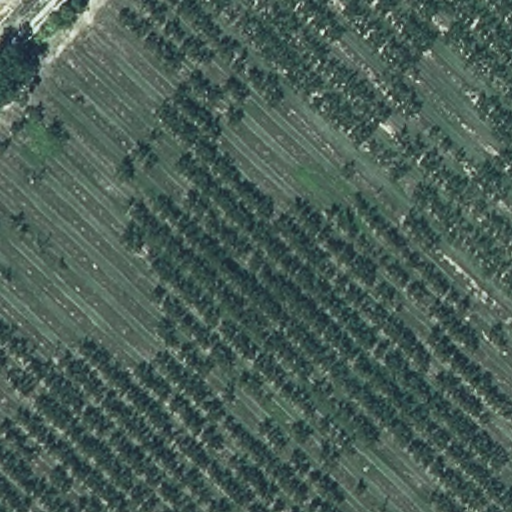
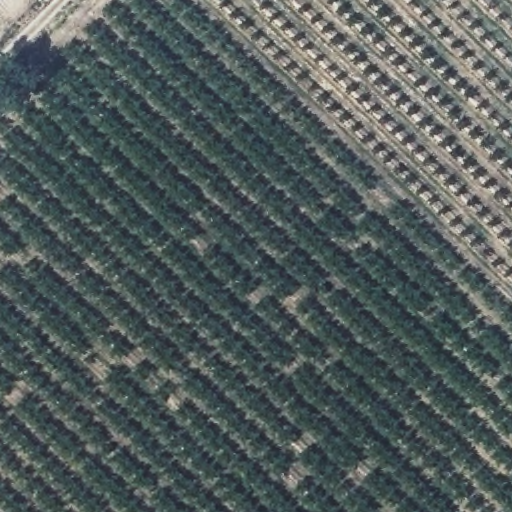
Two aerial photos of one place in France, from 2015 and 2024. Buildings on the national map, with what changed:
unchanged [(1,0),(0,1),(0,0),(1,0)]

